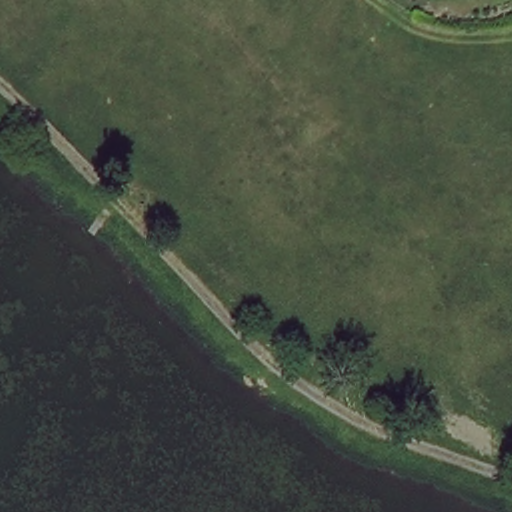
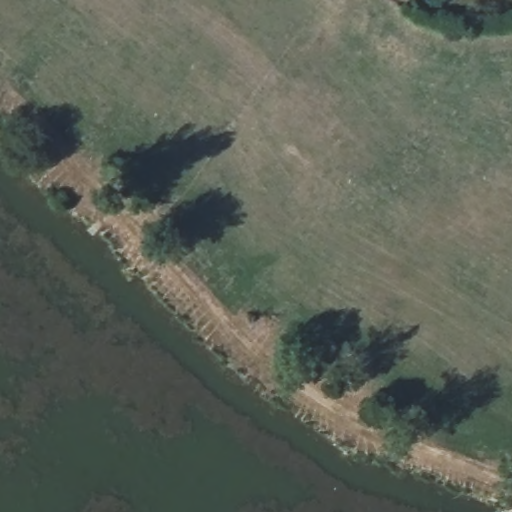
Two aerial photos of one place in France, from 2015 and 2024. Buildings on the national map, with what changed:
[]

